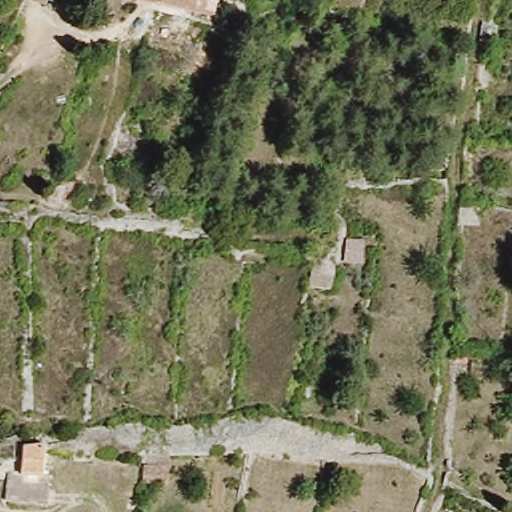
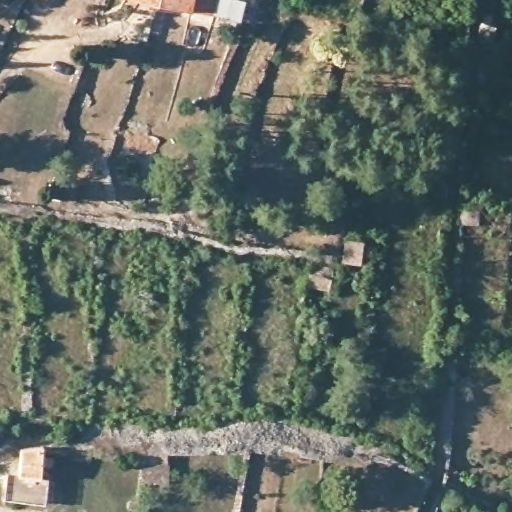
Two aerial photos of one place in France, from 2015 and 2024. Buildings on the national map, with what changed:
unchanged [(44,0),(43,4),(25,0),(44,0)]
unchanged [(146,1),(140,0),(197,0),(195,11),(146,1)]
unchanged [(483,21),(500,25),(498,51),(481,44),(483,21)]
unchanged [(363,264),(340,263),(340,238),(363,238),(363,264)]
unchanged [(50,506),(2,501),(5,474),(18,474),(18,445),(40,445),(40,474),(51,477),(50,506)]

